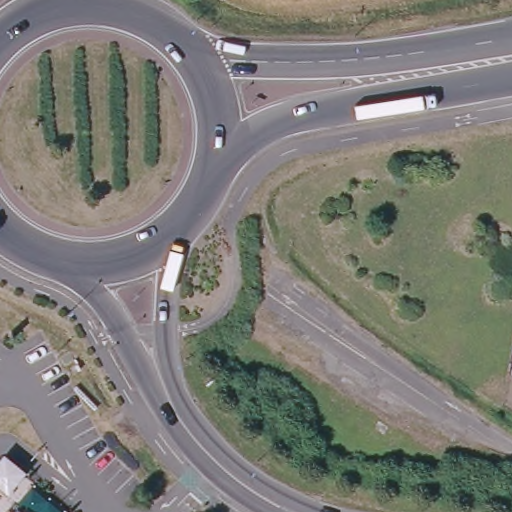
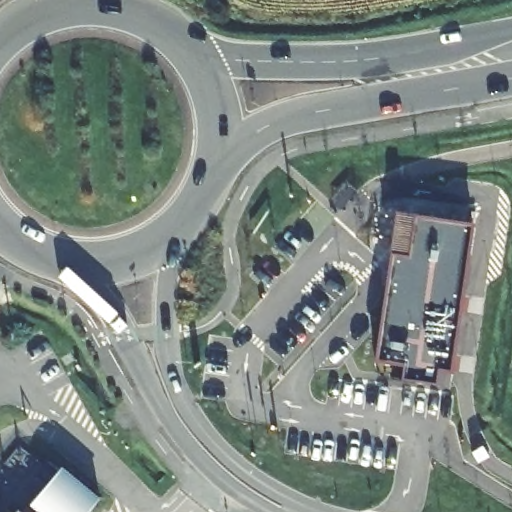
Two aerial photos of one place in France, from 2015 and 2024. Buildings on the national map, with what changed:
new [(453,370),(437,367),(437,382),(402,378),(403,363),(377,361),(397,211),(475,224),(453,370)]
unchanged [(5,462),(20,473),(7,488),(0,482),(0,467),(5,462)]
new [(102,498),(91,512),(40,512),(30,504),(61,466),(102,498)]
unchanged [(18,510),(21,512),(16,512),(18,510)]

